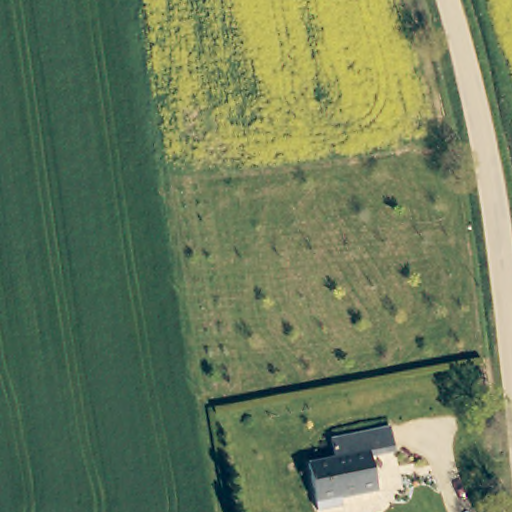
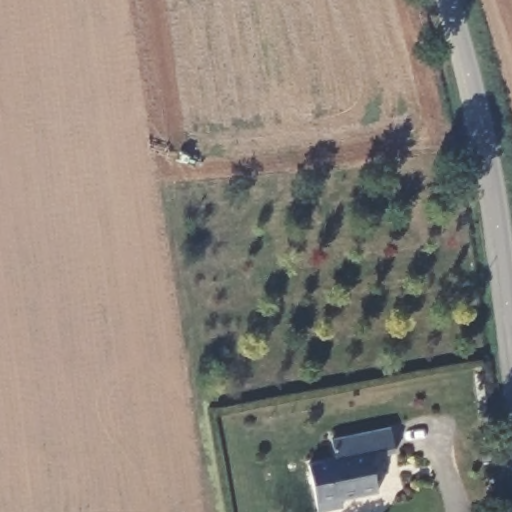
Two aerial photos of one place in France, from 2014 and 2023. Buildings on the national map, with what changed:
unchanged [(316,512),(308,467),(334,462),(329,442),(391,430),(396,457),(370,462),(377,497),(342,504),(344,511),(338,512),(316,512)]

